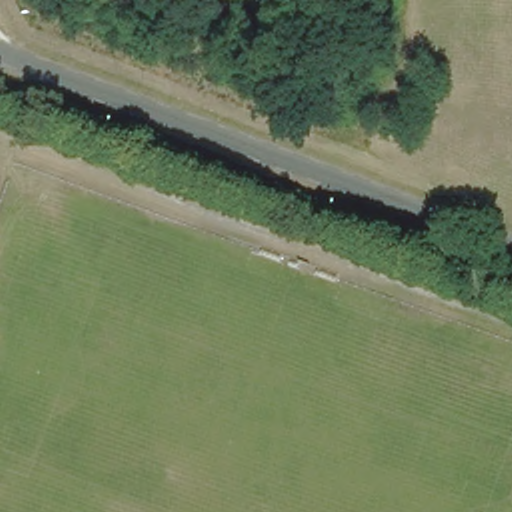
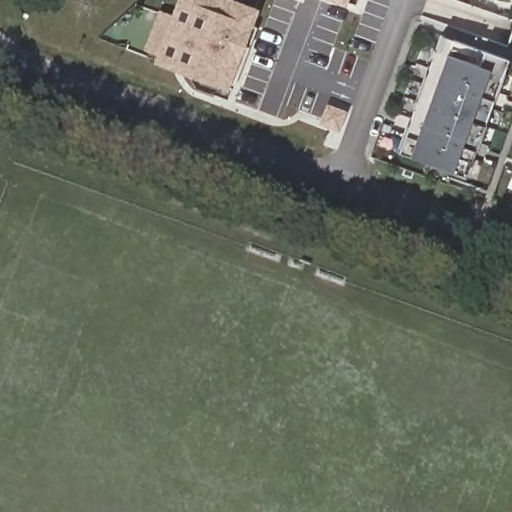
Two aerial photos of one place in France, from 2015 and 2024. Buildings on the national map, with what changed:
new [(263,5),(237,87),(147,54),(161,9),(177,13),(181,0),(250,0),(263,5)]
new [(350,4),(340,0),(352,0),(350,4)]
new [(467,174),(400,150),(444,33),(510,58),(467,174)]

